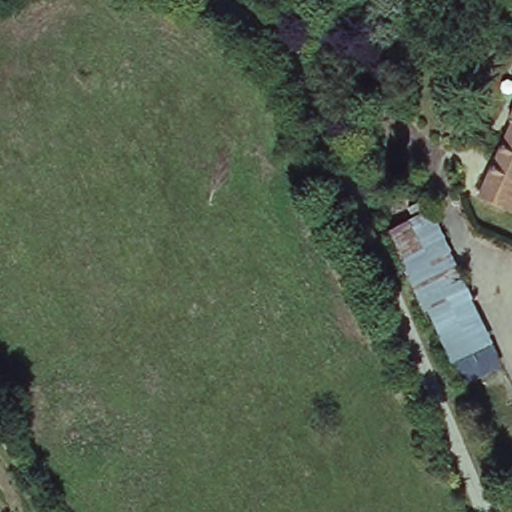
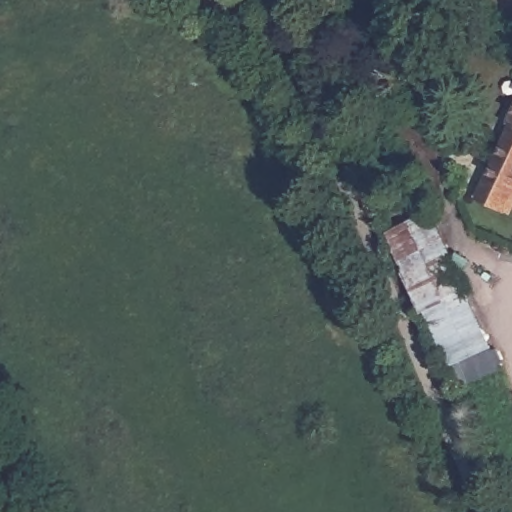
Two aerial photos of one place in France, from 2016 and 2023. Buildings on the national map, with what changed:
unchanged [(501,124),(512,98),(512,193),(503,214),(476,202),(503,139),(509,126),(501,124)]
unchanged [(455,388),(381,234),(413,223),(403,209),(422,202),(501,371),(455,388)]

